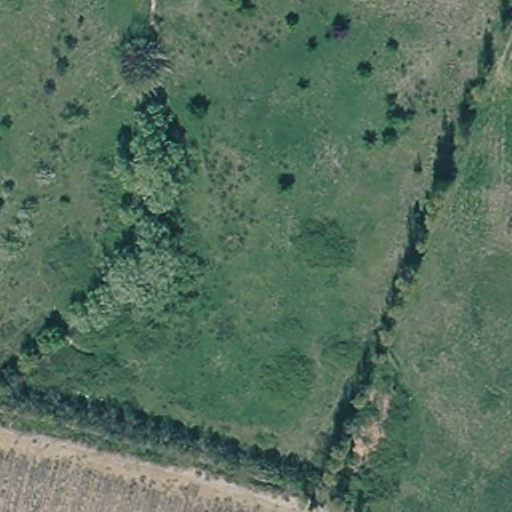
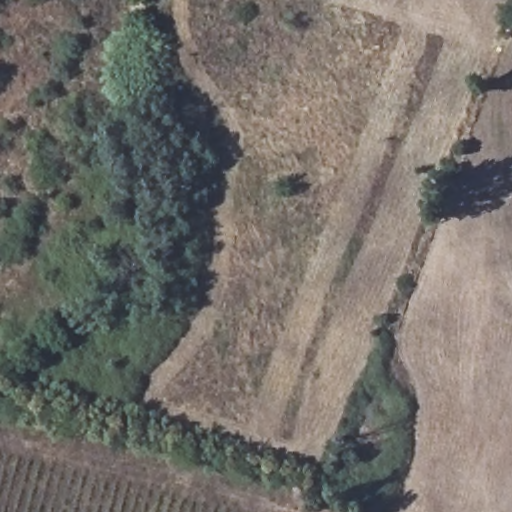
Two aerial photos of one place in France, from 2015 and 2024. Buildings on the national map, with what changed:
unchanged [(40,346),(28,365),(10,356),(25,336),(40,346)]

